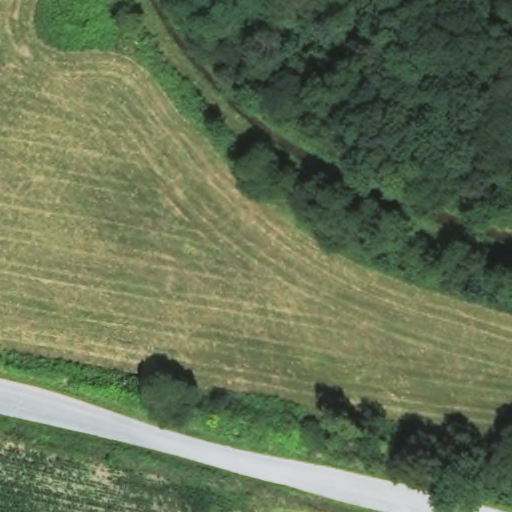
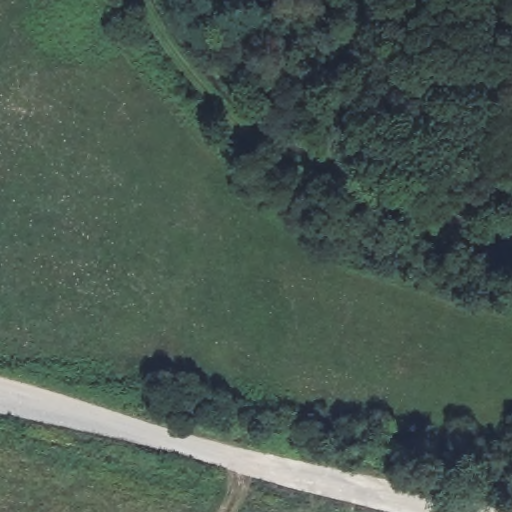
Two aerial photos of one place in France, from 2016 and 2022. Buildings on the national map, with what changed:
[]

